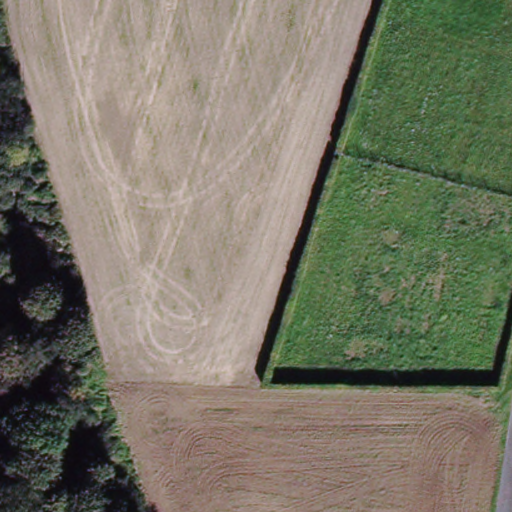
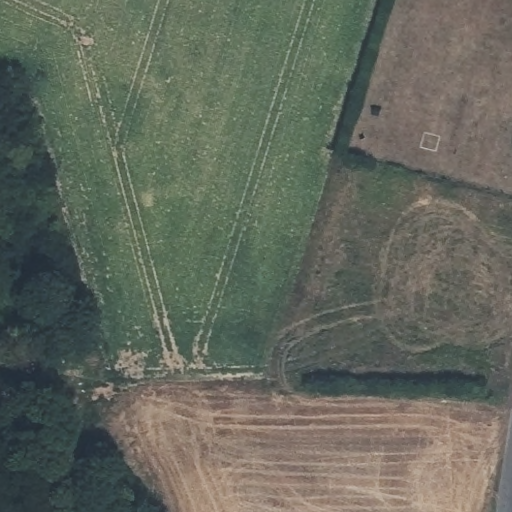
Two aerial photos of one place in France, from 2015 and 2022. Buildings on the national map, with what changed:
[]

